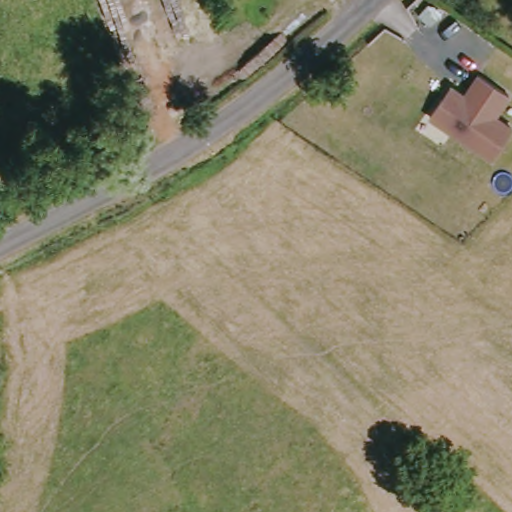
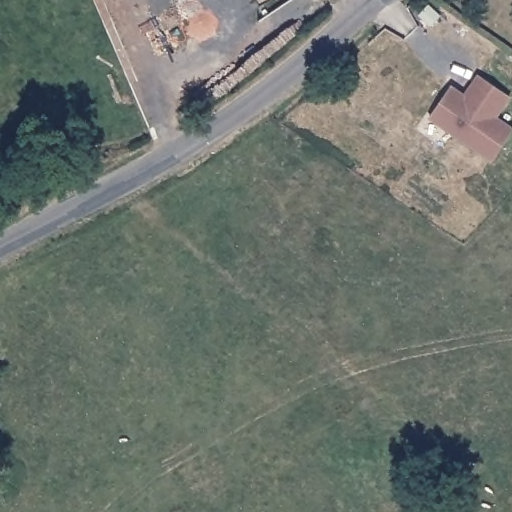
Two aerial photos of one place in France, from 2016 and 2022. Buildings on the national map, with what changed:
unchanged [(495,110),(491,116),(512,131),(512,135),(493,162),(430,117),(443,99),(450,105),(459,94),(471,102),(476,96),(470,92),(481,77),(510,97),(500,114),(495,110)]

